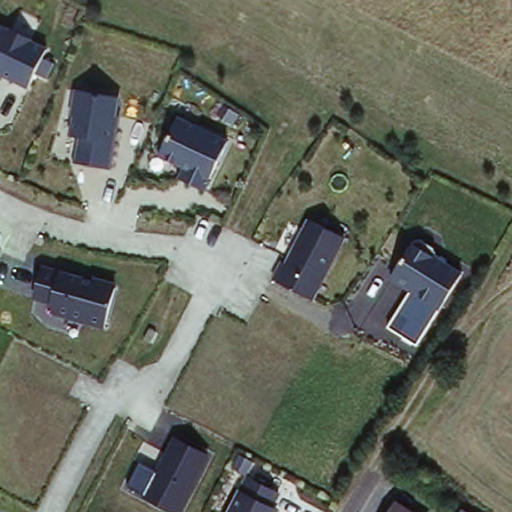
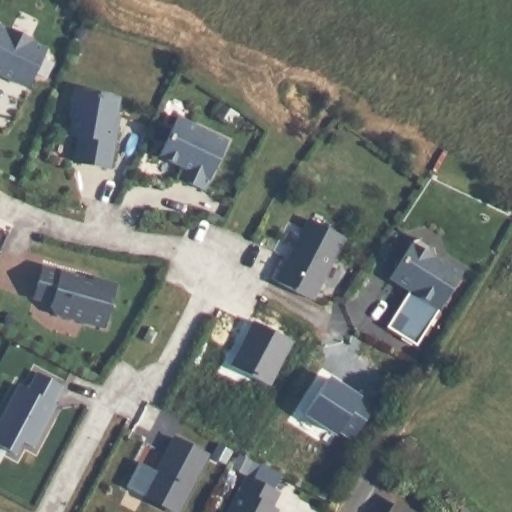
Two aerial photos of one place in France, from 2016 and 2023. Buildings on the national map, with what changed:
unchanged [(30,84),(0,71),(0,23),(49,47),(30,84)]
unchanged [(118,95),(110,170),(79,165),(83,138),(75,137),(80,93),(118,95)]
unchanged [(228,142),(208,190),(183,180),(187,171),(166,157),(180,123),(228,142)]
unchanged [(272,281),(280,261),(287,262),(309,220),(346,238),(313,302),(272,281)]
unchanged [(410,292),(391,278),(415,241),(464,273),(417,345),(388,327),(410,292)]
unchanged [(116,286),(105,328),(52,315),(49,305),(33,300),(42,267),(116,286)]
new [(37,371),(65,386),(56,402),(59,405),(36,447),(25,441),(18,453),(0,445),(0,420),(19,385),(25,390),(37,371)]
new [(329,375),(364,397),(375,406),(353,442),(340,433),(338,435),(305,415),(329,375)]
unchanged [(174,438),(208,456),(180,512),(171,512),(143,496),(174,438)]
unchanged [(248,476),(279,491),(273,506),(279,510),(278,512),(230,512),(248,476)]
unchanged [(401,512),(384,512),(389,504),(401,512)]
unchanged [(462,507),(470,512),(459,512),(462,507)]

